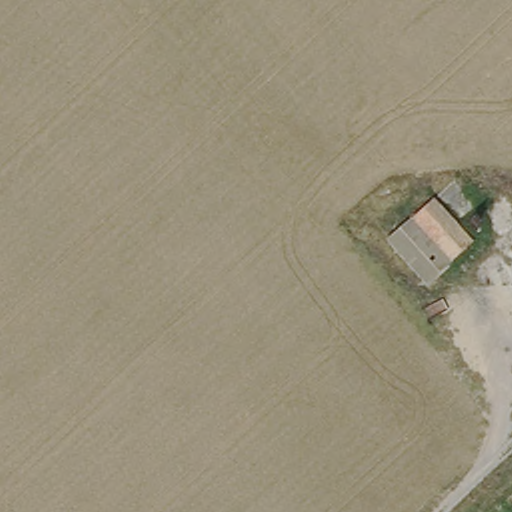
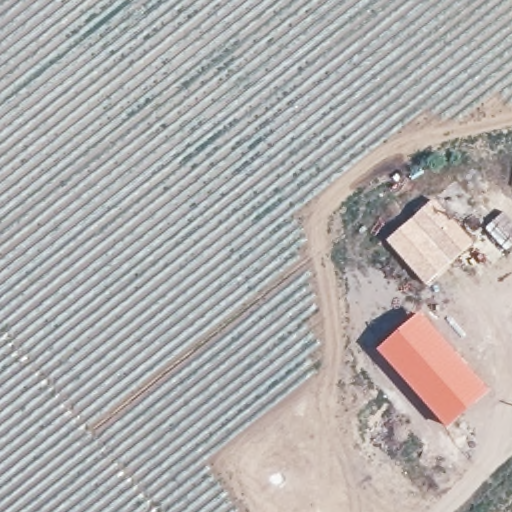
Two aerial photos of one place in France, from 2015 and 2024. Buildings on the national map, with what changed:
unchanged [(419,287),(379,239),(431,197),(469,238),(419,287)]
new [(421,313),(489,393),(448,429),(378,350),(421,313)]

